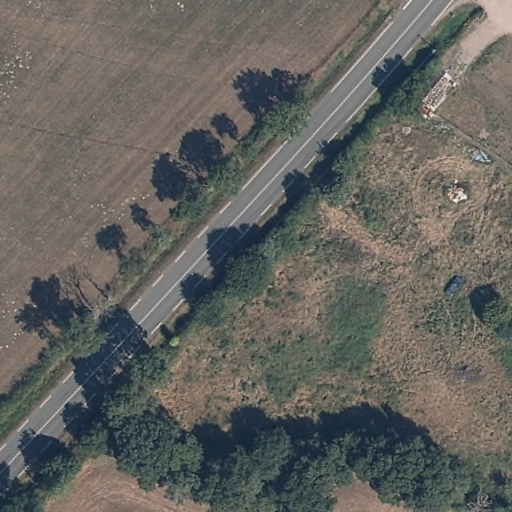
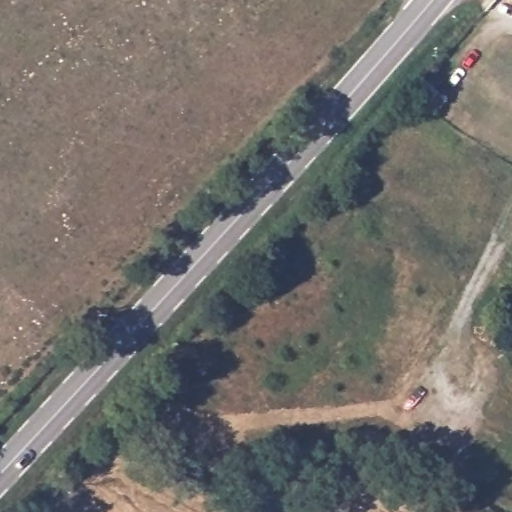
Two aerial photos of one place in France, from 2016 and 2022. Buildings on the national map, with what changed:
unchanged [(505,0),(512,0),(512,2),(505,0)]
unchanged [(433,112),(412,94),(435,66),(456,83),(433,112)]

